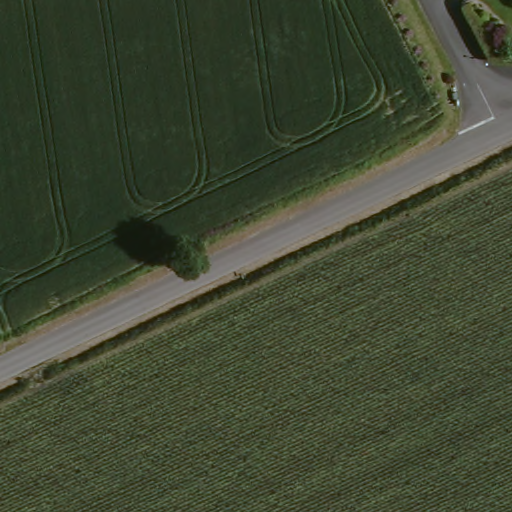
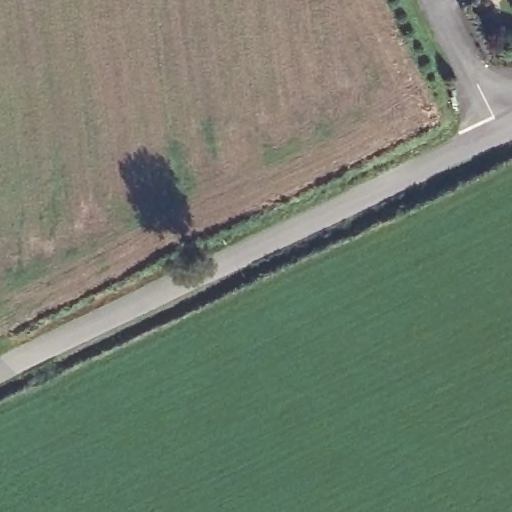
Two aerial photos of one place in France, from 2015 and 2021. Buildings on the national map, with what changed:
[]

